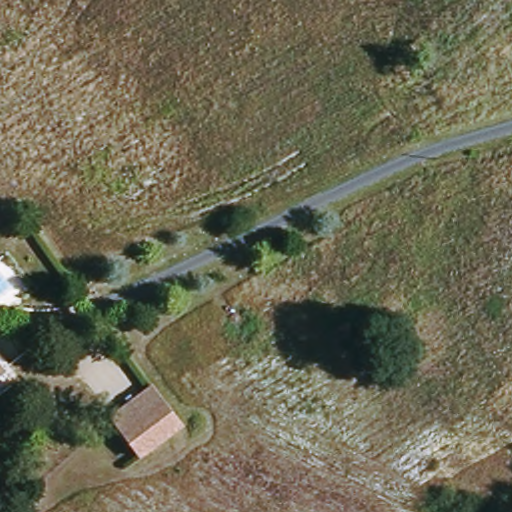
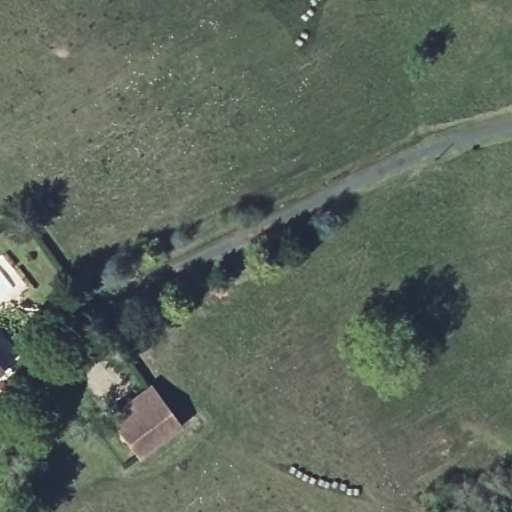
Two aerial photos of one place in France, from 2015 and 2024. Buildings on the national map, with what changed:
unchanged [(0,374),(0,356),(9,368),(0,374)]
unchanged [(185,425),(142,459),(110,419),(153,383),(185,425)]

